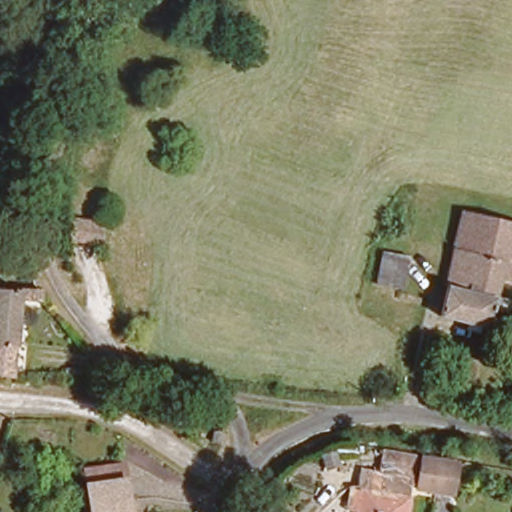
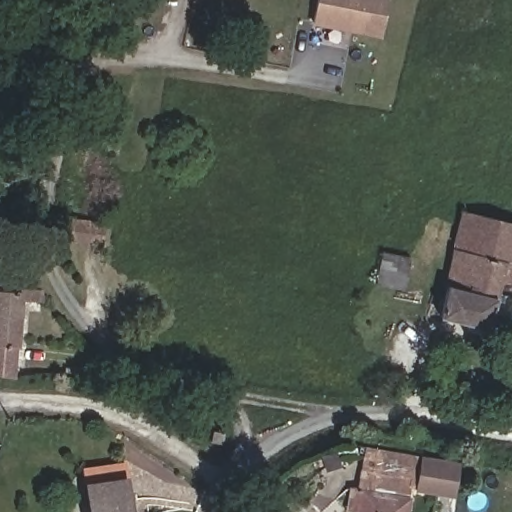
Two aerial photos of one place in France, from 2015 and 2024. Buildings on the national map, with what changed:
new [(317,0),(388,0),(381,37),(312,24),(317,0)]
unchanged [(504,286),(496,284),(481,331),(438,319),(467,213),(512,226),(512,262),(504,286)]
new [(72,218),(105,223),(102,246),(69,242),(72,218)]
unchanged [(412,258),(402,295),(377,288),(386,251),(412,258)]
unchanged [(15,375),(0,372),(0,298),(28,304),(15,375)]
unchanged [(217,452),(205,454),(197,429),(209,425),(216,431),(217,452)]
unchanged [(363,484),(355,482),(358,461),(375,464),(378,445),(414,452),(438,456),(447,458),(458,460),(452,488),(433,483),(410,477),(404,512),(359,512),(363,484)]
unchanged [(85,475),(134,463),(140,512),(90,512),(85,475)]

